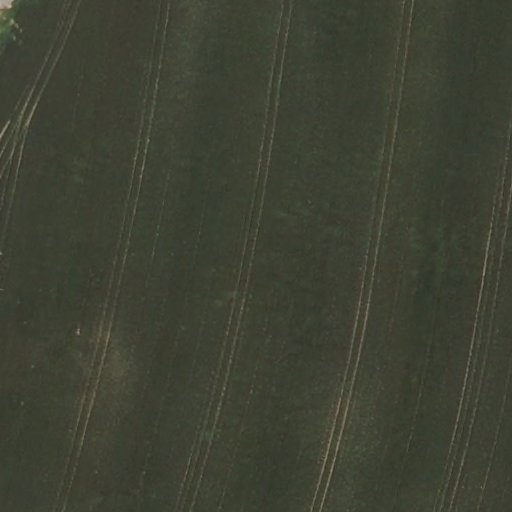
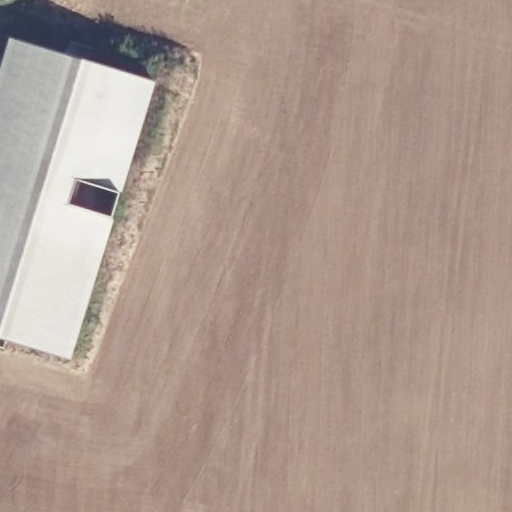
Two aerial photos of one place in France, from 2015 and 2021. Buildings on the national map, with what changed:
new [(72,358),(0,337),(0,65),(9,36),(156,81),(120,191),(76,177),(69,203),(113,216),(72,358)]

